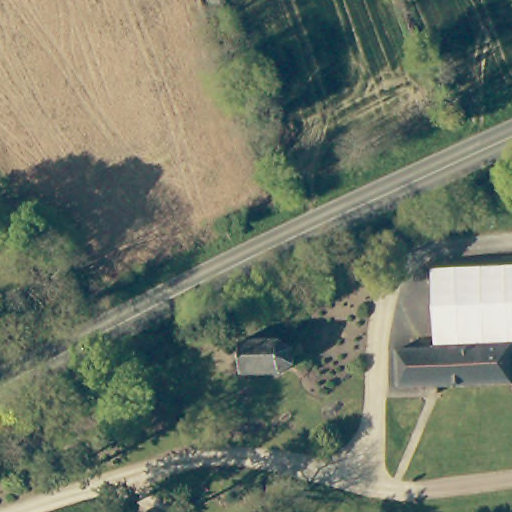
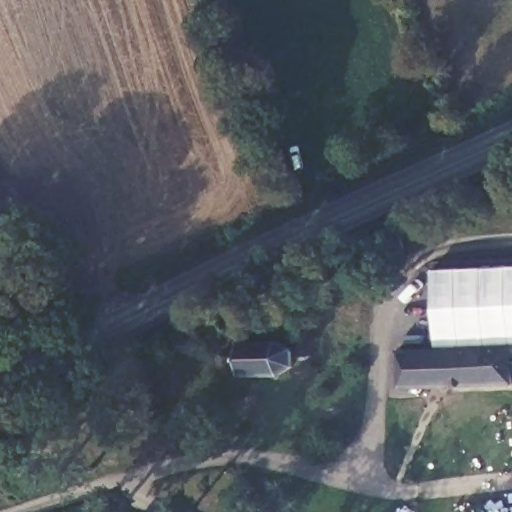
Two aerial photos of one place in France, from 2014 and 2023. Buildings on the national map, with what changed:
unchanged [(410,222),(411,246),(393,250),(391,231),(410,222)]
unchanged [(432,268),(512,265),(512,341),(435,345),(432,268)]
unchanged [(276,376),(240,379),(240,345),(278,343),(294,351),(294,368),(276,376)]
unchanged [(512,359),(510,359),(510,380),(396,385),(396,348),(512,344),(512,359)]

